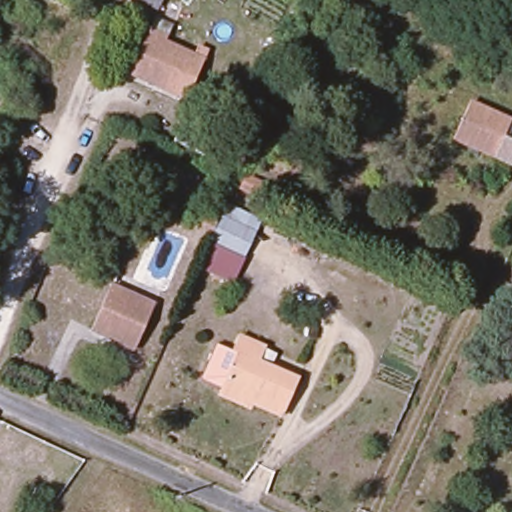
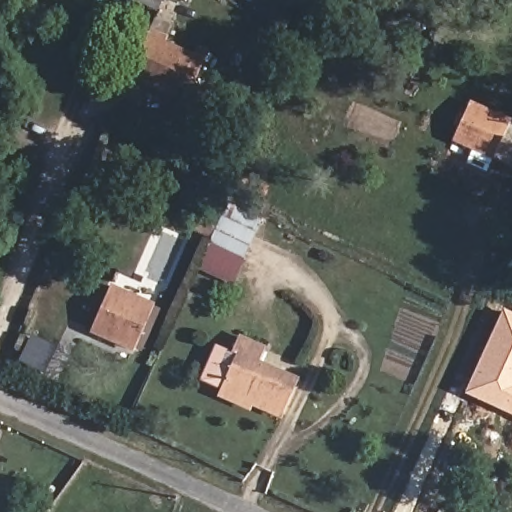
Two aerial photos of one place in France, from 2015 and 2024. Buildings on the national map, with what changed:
unchanged [(144,0),(162,0),(159,6),(144,0)]
unchanged [(129,78),(148,34),(166,42),(162,49),(201,66),(186,104),(129,78)]
unchanged [(469,108),(509,125),(502,144),(512,149),(512,174),(492,164),(451,146),(455,139),(469,108)]
unchanged [(241,194),(244,183),(266,192),(261,203),(241,194)]
unchanged [(201,228),(207,213),(225,221),(229,214),(263,229),(256,245),(249,242),(237,268),(210,256),(219,235),(201,228)]
unchanged [(86,334),(104,290),(148,309),(129,353),(86,334)]
new [(512,312),(512,414),(465,394),(504,308),(512,312)]
unchanged [(234,358),(230,357),(238,340),(265,353),(258,368),(297,385),(281,421),(254,409),(250,415),(216,400),(218,394),(219,393),(234,358)]

